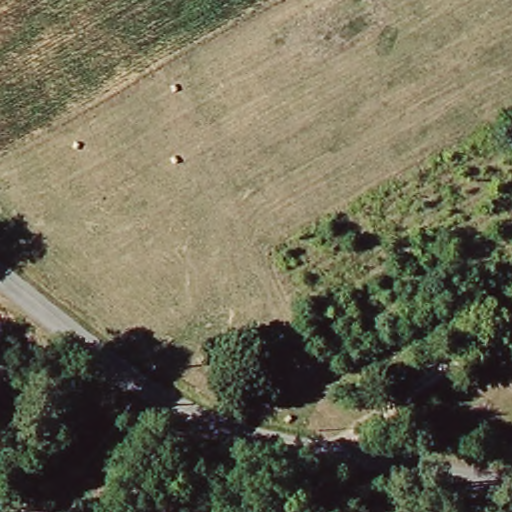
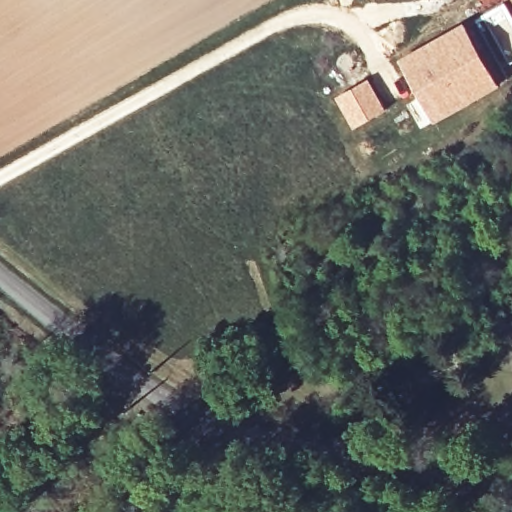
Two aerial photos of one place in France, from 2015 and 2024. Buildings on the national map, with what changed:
new [(462,23),(500,86),(422,129),(405,105),(418,97),(398,61),(462,23)]
new [(367,79),(386,110),(352,130),(335,98),(367,79)]

